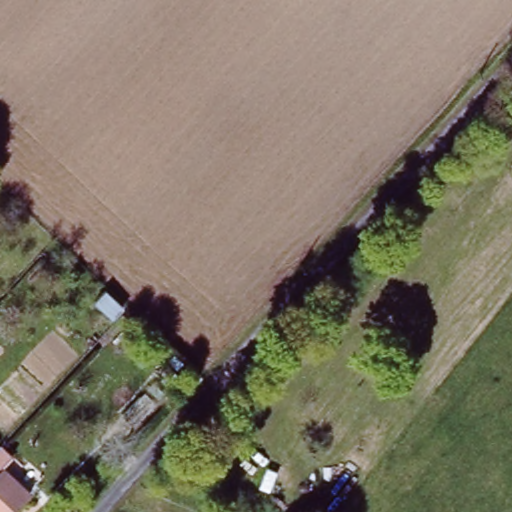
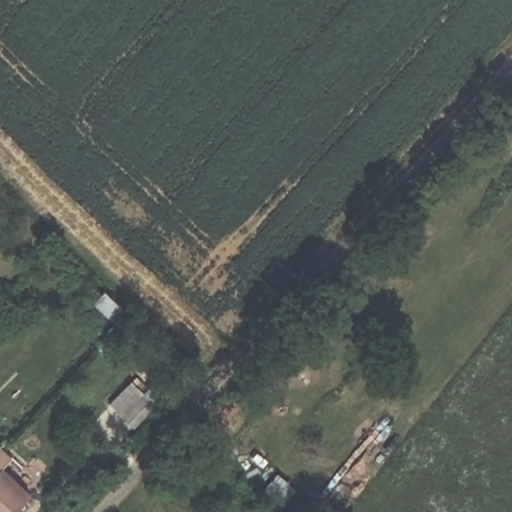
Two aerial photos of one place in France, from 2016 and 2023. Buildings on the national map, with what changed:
unchanged [(148,391),(159,401),(138,424),(128,415),(148,391)]
unchanged [(23,512),(16,512),(11,508),(8,512),(2,512),(0,510),(0,458),(8,448),(18,457),(8,468),(38,495),(23,512)]

